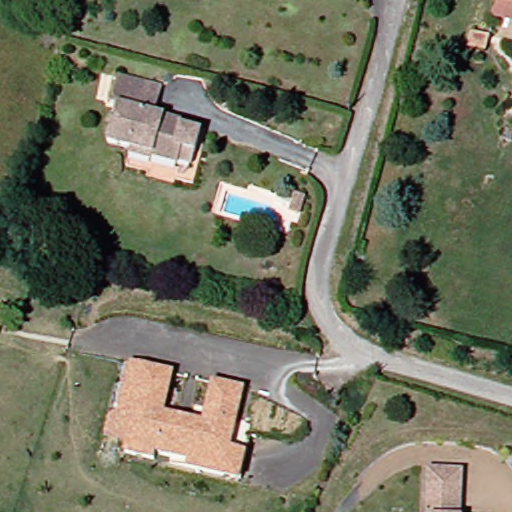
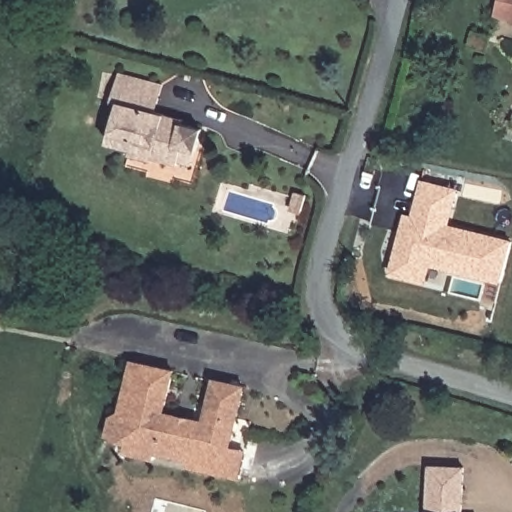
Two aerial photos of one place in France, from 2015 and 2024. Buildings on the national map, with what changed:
unchanged [(510,0),(512,0),(512,15),(507,14),(510,0)]
unchanged [(489,36),(486,49),(469,46),(472,32),(489,36)]
unchanged [(184,164),(159,157),(158,160),(136,153),(137,150),(113,144),(124,102),(116,100),(124,73),(168,85),(162,112),(171,114),(169,119),(208,129),(202,152),(197,168),(184,164)]
new [(412,215),(421,180),(459,189),(450,224),(512,240),(512,244),(502,283),(432,266),(428,284),(391,274),(405,213),(412,215)]
unchanged [(305,197),(300,214),(289,211),(294,194),(305,197)]
unchanged [(178,373),(169,414),(209,423),(218,382),(249,388),(235,449),(250,452),(244,479),(192,467),(193,461),(159,454),(158,460),(129,454),(137,417),(125,415),(126,407),(136,364),(178,373)]
unchanged [(469,467),(468,512),(433,512),(434,466),(469,467)]

